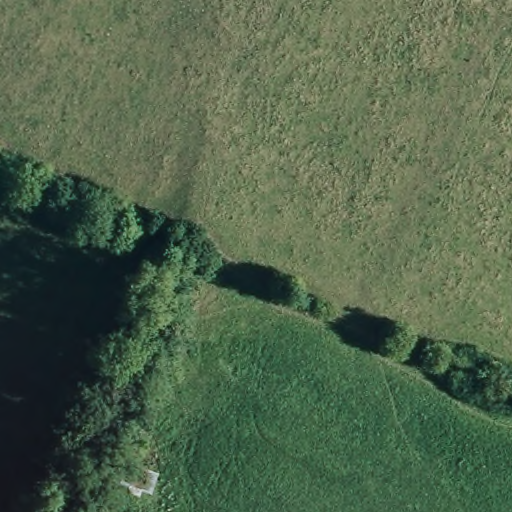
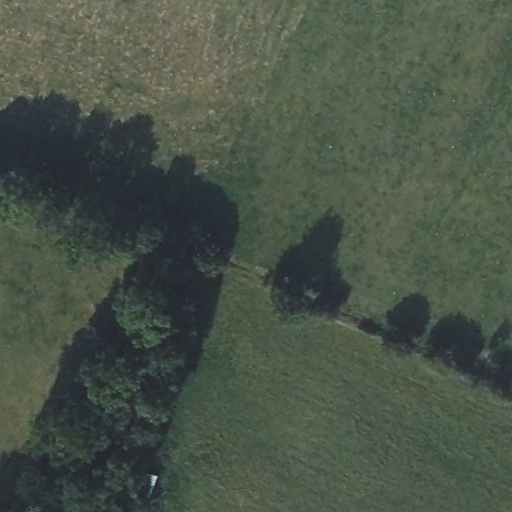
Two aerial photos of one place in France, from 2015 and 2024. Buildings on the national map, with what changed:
unchanged [(161,475),(154,497),(142,495),(139,500),(125,494),(126,488),(116,483),(124,463),(161,475)]

